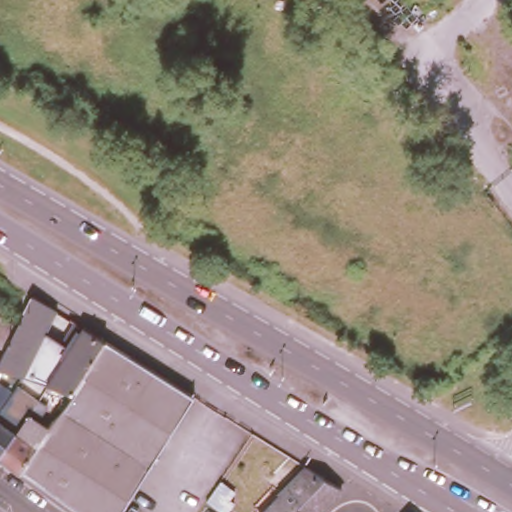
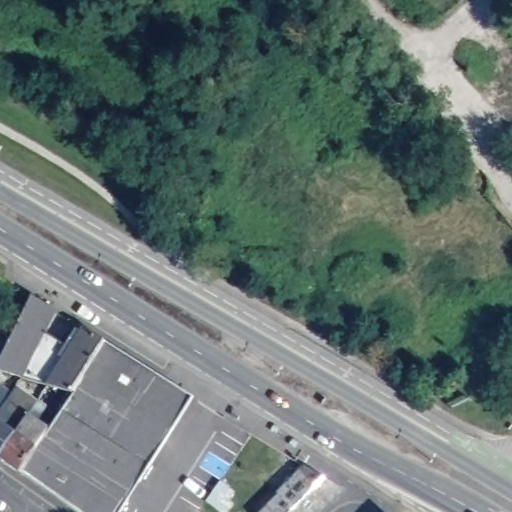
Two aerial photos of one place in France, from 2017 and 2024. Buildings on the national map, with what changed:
unchanged [(19,421),(39,436),(62,401),(37,393),(12,385),(20,372),(17,371),(0,365),(0,355),(16,322),(32,292),(51,304),(55,306),(53,310),(38,342),(60,355),(81,323),(103,337),(195,395),(119,512),(81,512),(18,467),(0,455),(0,408),(19,421)]
unchanged [(5,315),(16,322),(3,344),(0,343),(0,313),(5,315)]
unchanged [(339,485),(339,487),(314,512),(256,512),(305,463),(339,485)]
unchanged [(223,478),(234,486),(218,510),(206,501),(223,478)]

